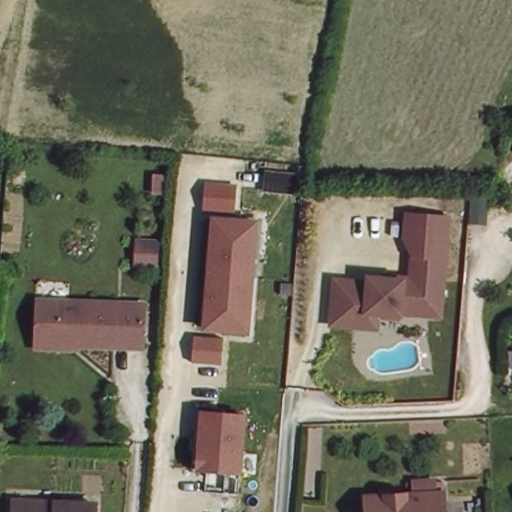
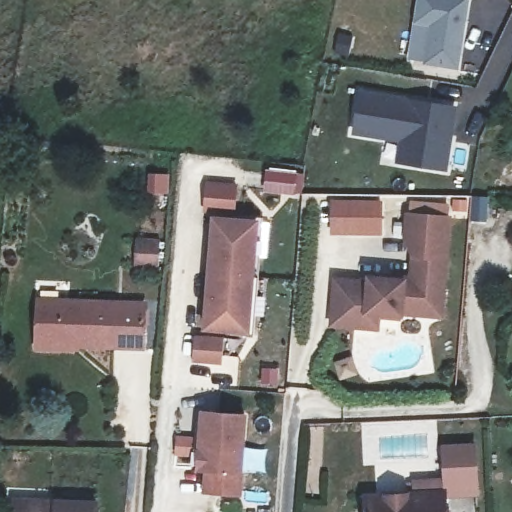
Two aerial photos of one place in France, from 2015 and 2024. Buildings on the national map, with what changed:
new [(457,72),(420,67),(425,30),(410,26),(413,0),(466,0),(457,72)]
new [(394,164),(397,142),(352,135),(359,89),(457,106),(446,172),(394,164)]
new [(267,172),(295,174),(293,193),(266,191),(267,172)]
new [(382,196),(382,235),(330,233),(330,195),(382,196)]
new [(470,195),(489,196),(488,225),(470,224),(470,195)]
unchanged [(337,324),(337,317),(340,280),(374,282),(374,276),(416,280),(419,254),(410,238),(412,213),(454,216),(447,297),(446,315),(435,314),(406,312),(405,315),(384,312),(382,327),(337,324)]
unchanged [(258,220),(250,333),(204,328),(214,217),(258,220)]
unchanged [(162,268),(135,267),(137,233),(163,234),(162,268)]
unchanged [(37,346),(37,338),(38,300),(144,303),(142,346),(77,344),(77,347),(37,346)]
unchanged [(195,334),(225,336),(222,363),(194,361),(195,334)]
unchanged [(247,414),(240,495),(201,493),(203,470),(195,470),(197,411),(247,414)]
new [(420,475),(437,475),(436,445),(472,443),(475,491),(443,492),(422,493),(420,475)]
unchanged [(443,492),(444,512),(367,512),(367,495),(422,493),(443,492)]
unchanged [(13,512),(14,500),(96,503),(96,512),(13,512)]

